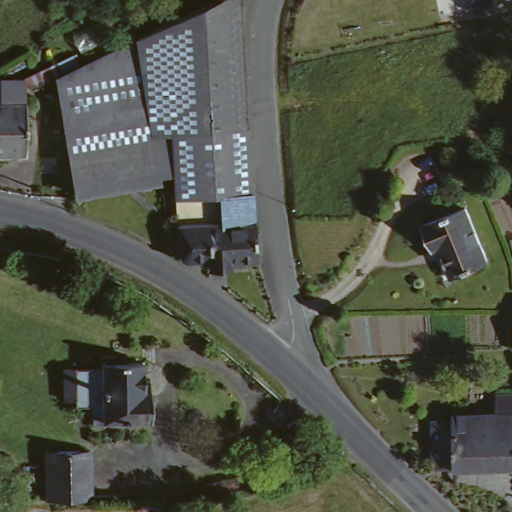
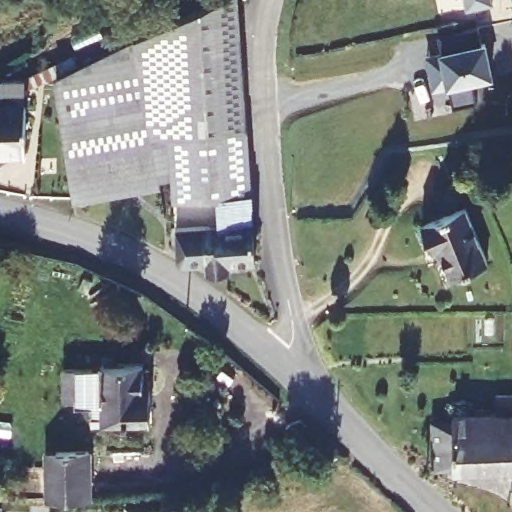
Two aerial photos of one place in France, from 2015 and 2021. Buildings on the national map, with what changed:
unchanged [(242,69),(242,78),(246,134),(152,145),(134,48),(134,45),(217,0),(236,0),(242,69)]
unchanged [(460,5),(459,0),(492,0),(460,5)]
new [(454,108),(449,89),(433,91),(426,55),(441,51),(439,37),(478,29),(480,44),(487,42),(494,79),(471,85),(476,103),(454,108)]
unchanged [(67,156),(62,127),(65,126),(57,85),(134,48),(152,145),(67,156)]
unchanged [(24,160),(0,160),(0,112),(0,86),(23,85),(24,160)]
unchanged [(175,202),(173,184),(159,185),(152,145),(246,134),(252,200),(175,202)]
unchanged [(159,185),(74,200),(67,156),(152,145),(159,185)]
unchanged [(252,200),(253,228),(206,230),(206,227),(176,229),(175,202),(252,200)]
unchanged [(489,265),(454,282),(439,252),(434,255),(422,231),(462,211),(489,265)]
unchanged [(206,227),(206,230),(253,228),(254,265),(229,267),(229,272),(206,274),(206,267),(187,268),(186,260),(177,260),(176,229),(206,227)]
unchanged [(141,381),(148,381),(150,421),(101,423),(101,426),(92,426),(91,408),(73,409),(73,403),(62,404),(61,384),(72,383),(72,367),(100,366),(100,362),(140,361),(141,381)]
unchanged [(454,472),(440,472),(433,463),(432,425),(453,424),(453,418),(474,417),(474,413),(479,413),(479,416),(493,416),(495,399),(512,398),(512,471),(454,473),(454,472)]
unchanged [(46,502),(45,452),(86,451),(88,500),(46,502)]

